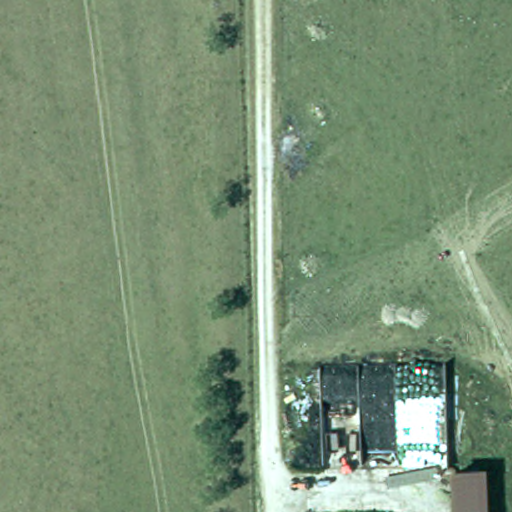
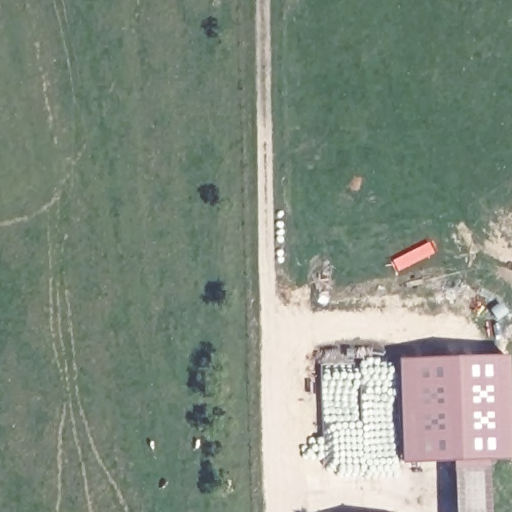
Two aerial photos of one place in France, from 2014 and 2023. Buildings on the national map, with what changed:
new [(510,458),(400,462),(397,359),(507,355),(510,458)]
unchanged [(488,468),(490,512),(454,512),(453,471),(488,468)]

